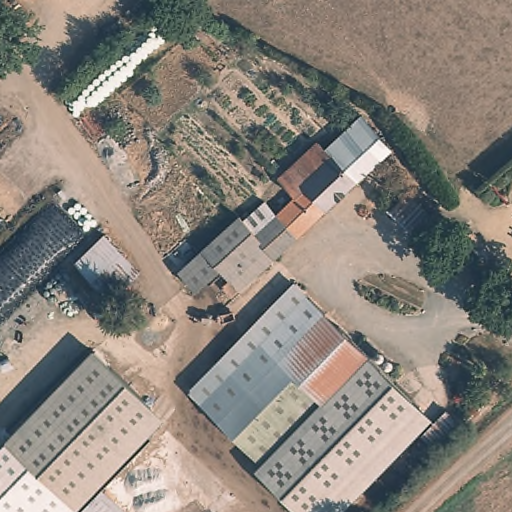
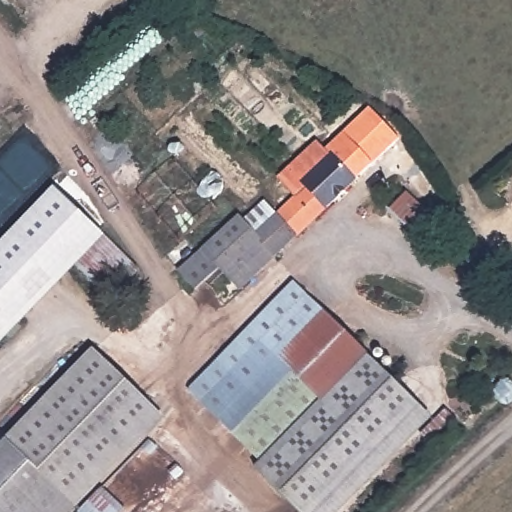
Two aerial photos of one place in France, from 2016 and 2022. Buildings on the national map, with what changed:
unchanged [(1,2),(0,0),(3,0),(1,2)]
unchanged [(209,29),(199,40),(187,29),(198,17),(209,29)]
unchanged [(367,115),(398,147),(391,155),(379,165),(349,131),(367,115)]
unchanged [(237,297),(228,287),(236,279),(227,268),(203,291),(184,272),(244,217),(248,221),(269,202),(282,215),(300,197),(284,180),(323,142),(329,149),(331,147),(349,131),(379,165),(237,297)]
new [(103,232),(0,338),(0,252),(59,190),(103,232)]
unchanged [(408,194),(438,225),(421,242),(390,212),(408,194)]
unchanged [(111,240),(146,276),(118,303),(83,267),(111,240)]
unchanged [(424,406),(320,512),(303,512),(260,470),(268,463),(194,391),(299,284),(424,406)]
unchanged [(104,483),(129,510),(127,512),(81,512),(79,510),(5,441),(95,347),(169,417),(104,483)]
unchanged [(446,411),(457,422),(433,447),(422,436),(446,411)]
unchanged [(0,512),(0,446),(5,441),(76,508),(73,512),(0,512)]

